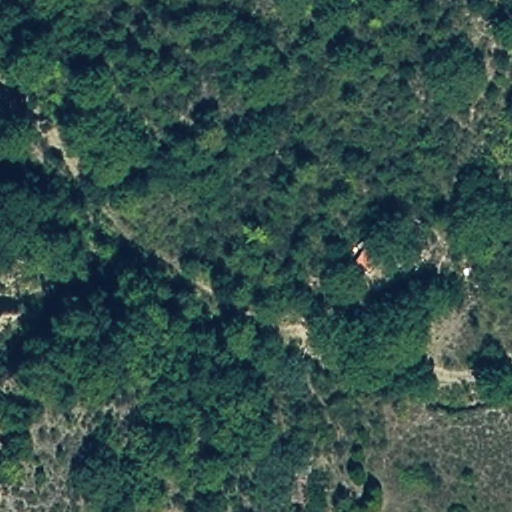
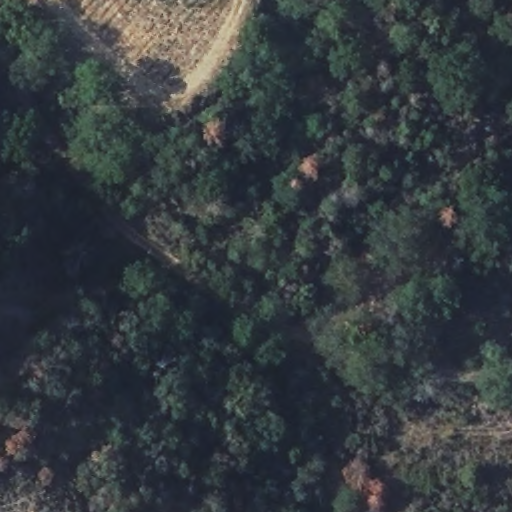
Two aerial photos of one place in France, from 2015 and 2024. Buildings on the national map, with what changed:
unchanged [(310,505),(291,504),(296,465),(314,466),(310,505)]

